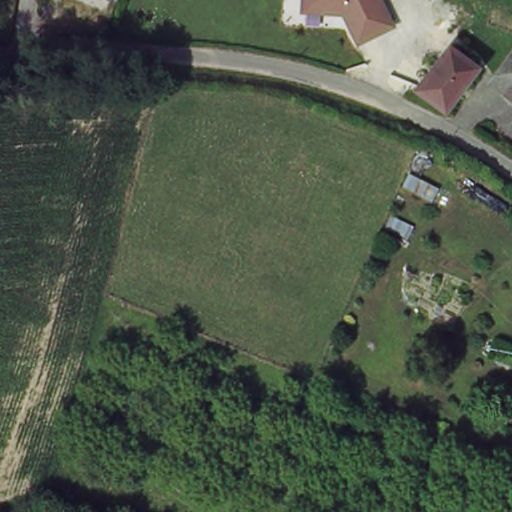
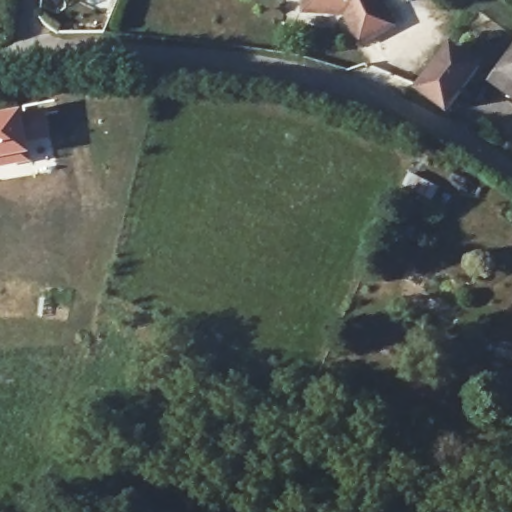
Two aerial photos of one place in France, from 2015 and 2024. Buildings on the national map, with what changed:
unchanged [(362,44),(345,17),(301,13),(302,0),(384,0),(397,26),(362,44)]
unchanged [(483,65),(452,105),(418,92),(456,44),(483,65)]
unchanged [(512,56),(512,90),(495,78),(512,56)]
new [(25,109),(32,160),(0,164),(0,113),(25,109)]

